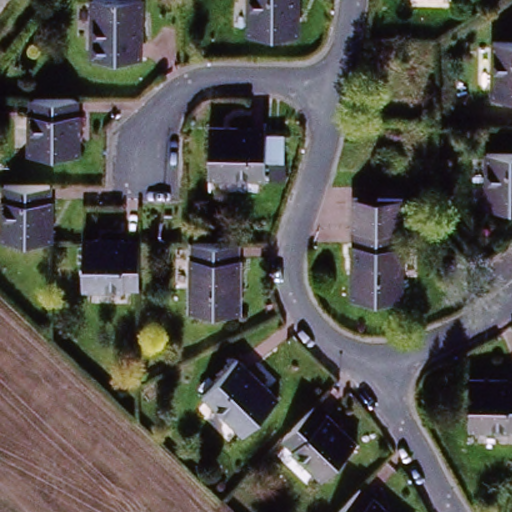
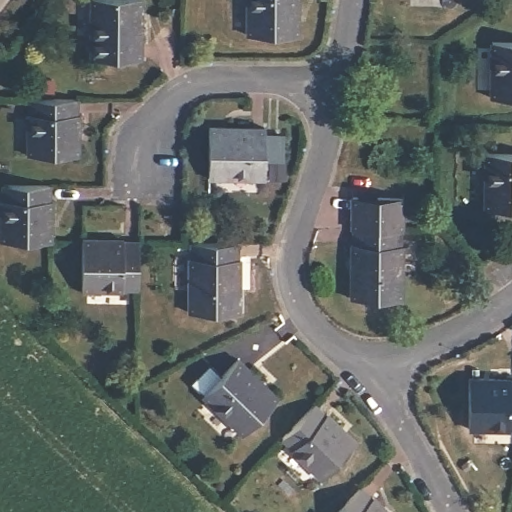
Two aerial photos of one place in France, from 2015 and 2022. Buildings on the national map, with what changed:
unchanged [(297,39),(247,38),(248,0),(298,0),(297,39)]
unchanged [(140,1),(138,61),(90,59),(91,1),(140,1)]
unchanged [(492,45),(512,45),(512,100),(494,101),(492,45)]
unchanged [(78,103),(78,118),(84,118),(83,158),(30,160),(31,104),(78,103)]
unchanged [(268,128),(268,181),(208,181),(208,128),(268,128)]
unchanged [(512,155),(512,213),(492,214),(490,156),(512,155)]
unchanged [(51,198),(57,198),(58,240),(5,242),(5,201),(10,201),(10,187),(50,187),(51,198)]
unchanged [(402,227),(387,228),(358,228),(358,201),(409,201),(410,227),(402,227)]
unchanged [(387,228),(402,227),(402,245),(407,245),(407,299),(355,299),(355,242),(358,243),(358,228),(387,228)]
unchanged [(129,239),(130,244),(144,244),(144,288),(126,288),(127,294),(85,295),(85,248),(85,240),(129,239)]
unchanged [(242,245),(241,258),(247,259),(245,312),(193,312),(193,259),(196,259),(197,244),(242,245)]
unchanged [(245,361),(287,397),(252,435),(210,399),(245,361)]
unchanged [(510,431),(512,436),(471,436),(472,382),(512,381),(512,432),(510,431)]
unchanged [(322,421),(326,416),(356,445),(322,481),(288,454),(291,450),(283,444),(314,412),(322,421)]
unchanged [(375,501),(387,512),(345,512),(362,495),(372,505),(375,501)]

